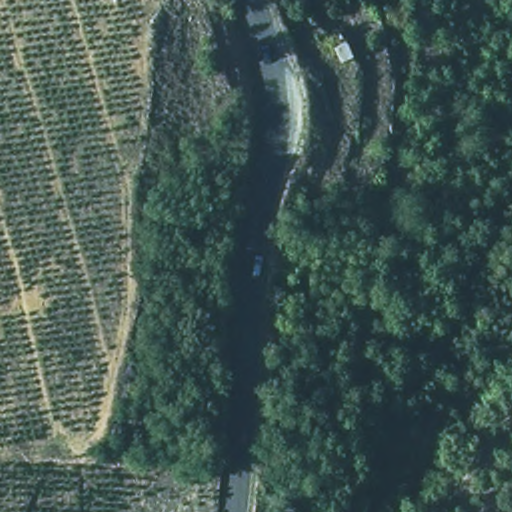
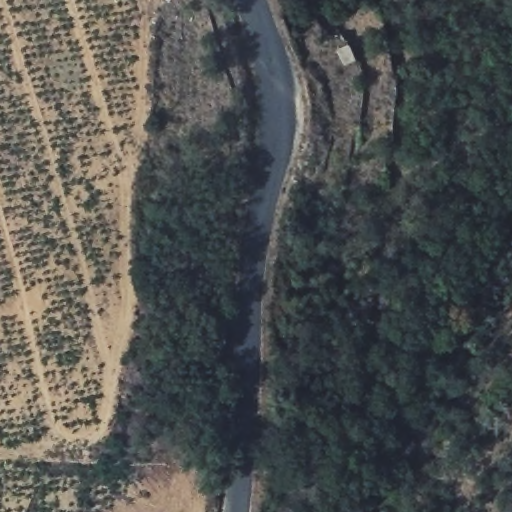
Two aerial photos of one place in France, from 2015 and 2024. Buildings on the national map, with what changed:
unchanged [(346,38),(355,52),(339,65),(331,49),(346,38)]

